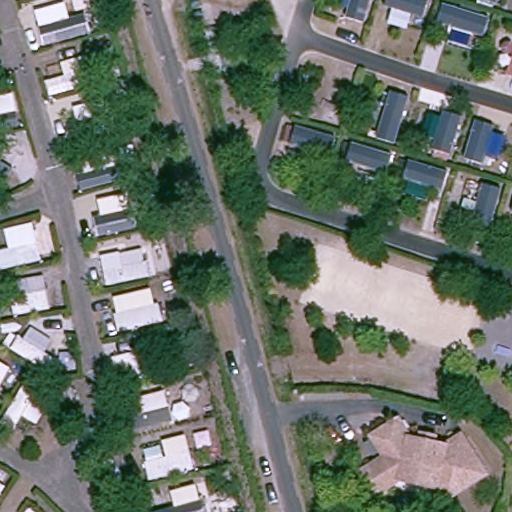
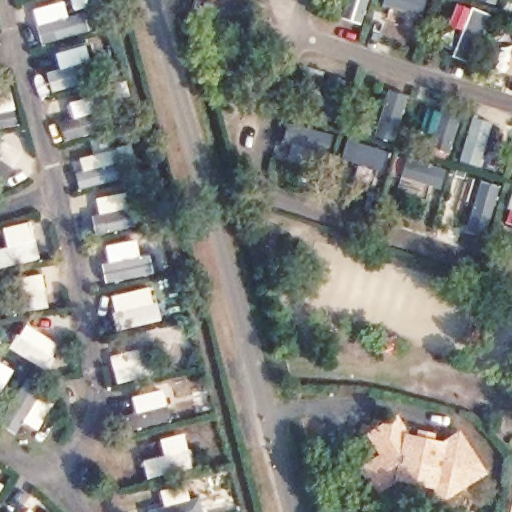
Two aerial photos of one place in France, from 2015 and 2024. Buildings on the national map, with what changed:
unchanged [(382,454),(366,432),(398,408),(410,429),(444,437),(457,427),(490,473),(449,499),(404,478),(381,493),(368,465),(382,454)]

